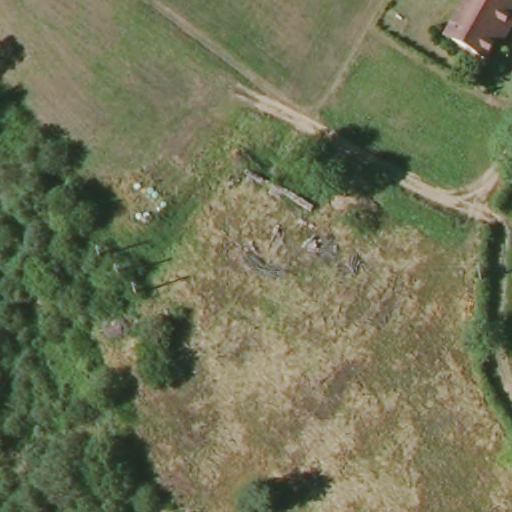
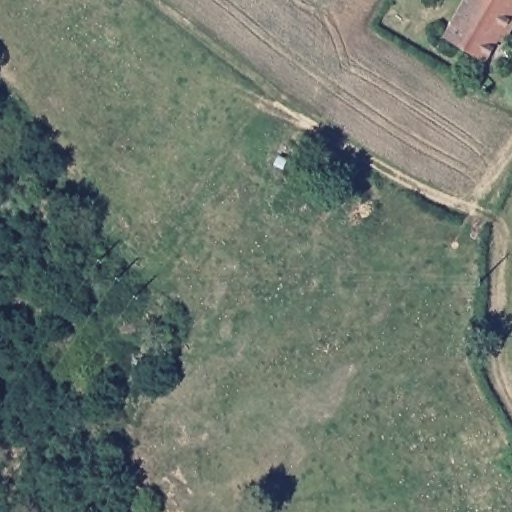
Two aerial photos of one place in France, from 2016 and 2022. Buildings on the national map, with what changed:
unchanged [(452,22),(463,0),(512,0),(512,19),(502,39),(497,37),(485,60),(450,42),(444,39),(452,22)]

